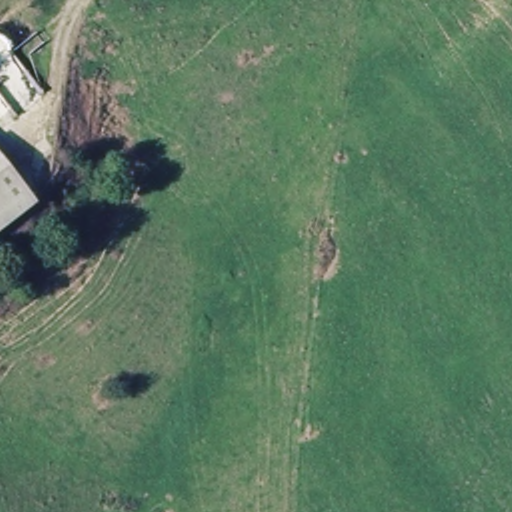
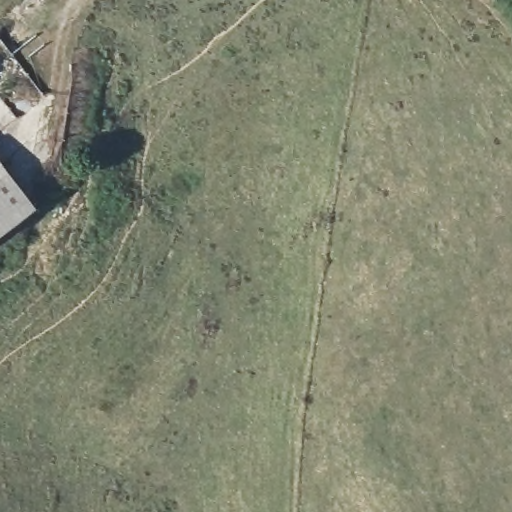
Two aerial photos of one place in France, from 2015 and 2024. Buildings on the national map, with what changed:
unchanged [(35,229),(0,251),(0,168),(35,229)]

